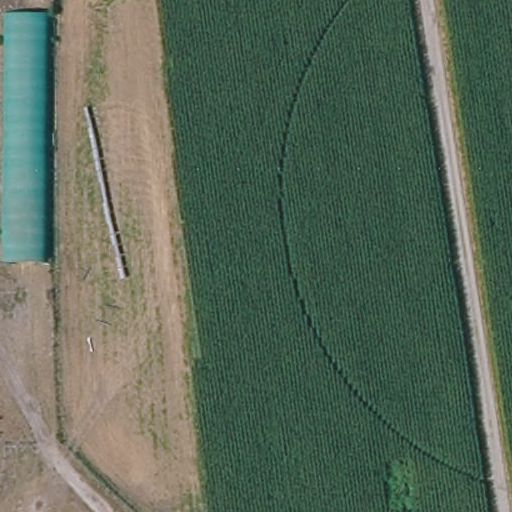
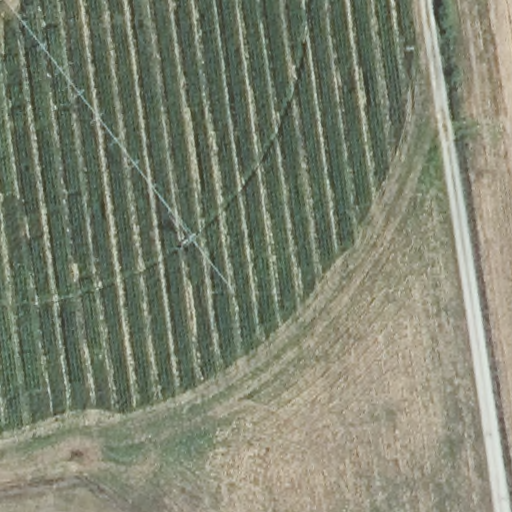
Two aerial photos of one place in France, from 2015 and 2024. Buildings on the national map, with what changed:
demolished [(44,266),(0,266),(0,15),(44,14),(44,266)]

